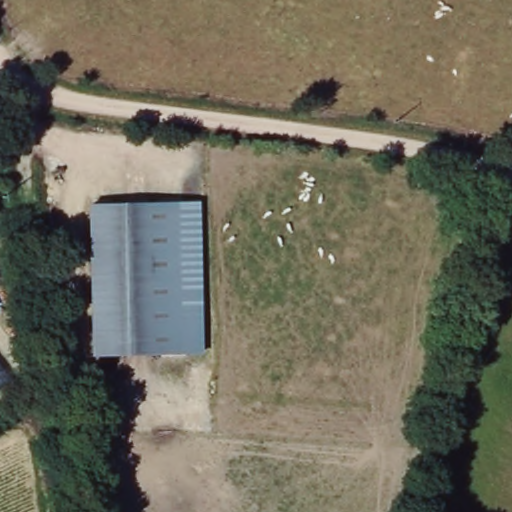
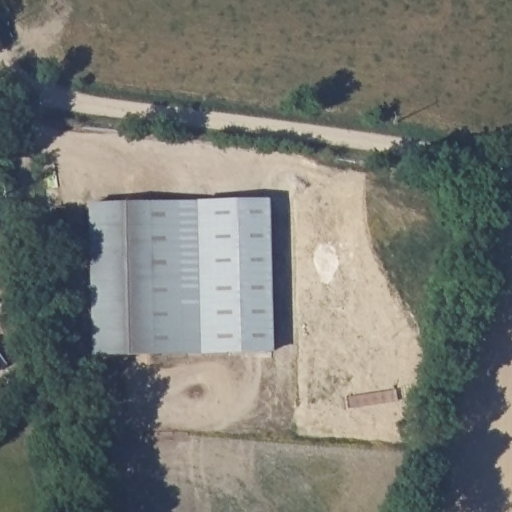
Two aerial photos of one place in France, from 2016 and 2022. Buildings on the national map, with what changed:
unchanged [(4,188),(0,193),(0,184),(4,188)]
unchanged [(204,355),(92,356),(85,203),(200,199),(204,355)]
new [(200,200),(270,200),(273,354),(204,355),(200,200)]

